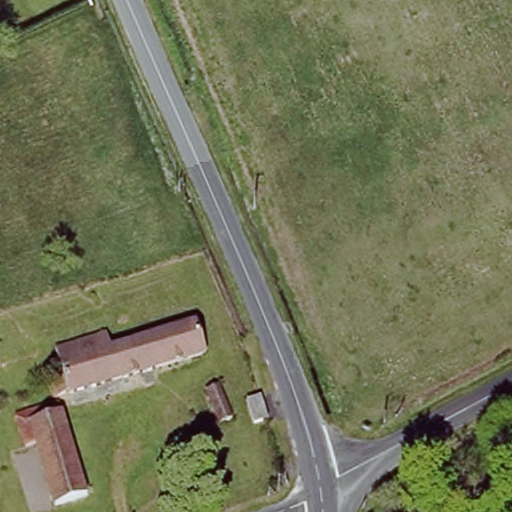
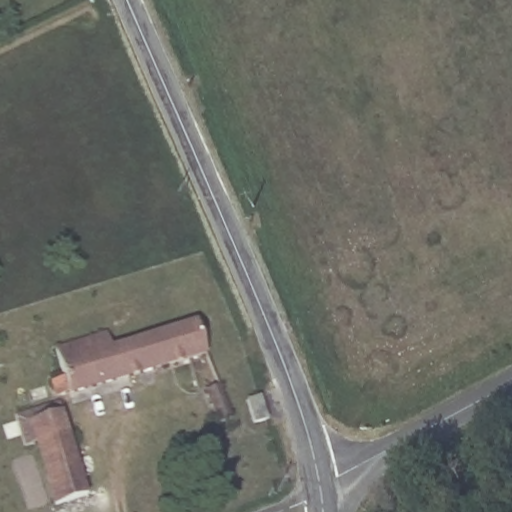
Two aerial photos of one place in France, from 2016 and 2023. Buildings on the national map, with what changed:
unchanged [(199,325),(208,353),(56,401),(50,383),(64,379),(56,352),(107,336),(112,352),(199,325)]
unchanged [(219,386),(231,421),(214,427),(203,392),(219,386)]
unchanged [(91,512),(54,512),(33,446),(17,451),(7,420),(56,404),(91,512)]

